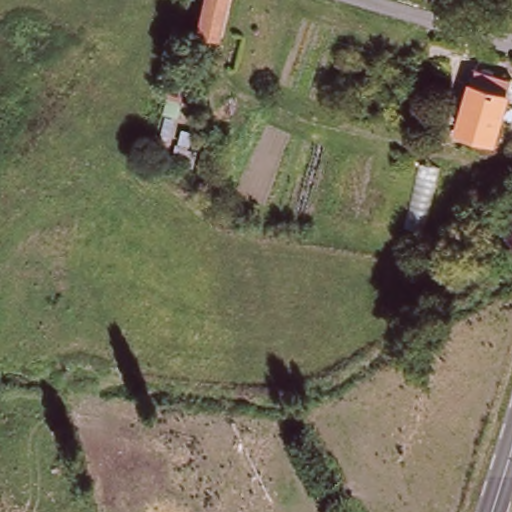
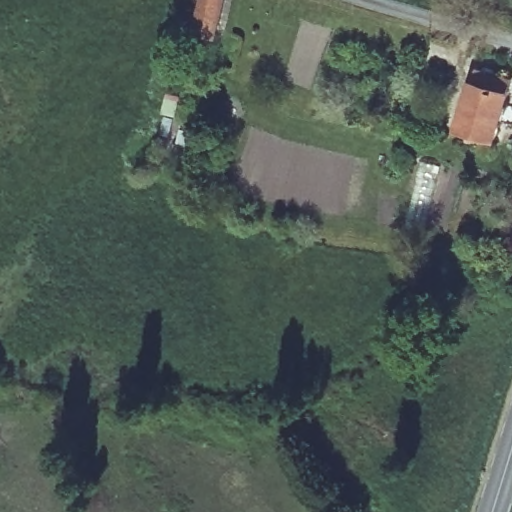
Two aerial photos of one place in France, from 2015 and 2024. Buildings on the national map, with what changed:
unchanged [(195,23),(201,0),(222,0),(214,29),(195,23)]
unchanged [(511,89),(492,150),(455,139),(474,77),(511,89)]

